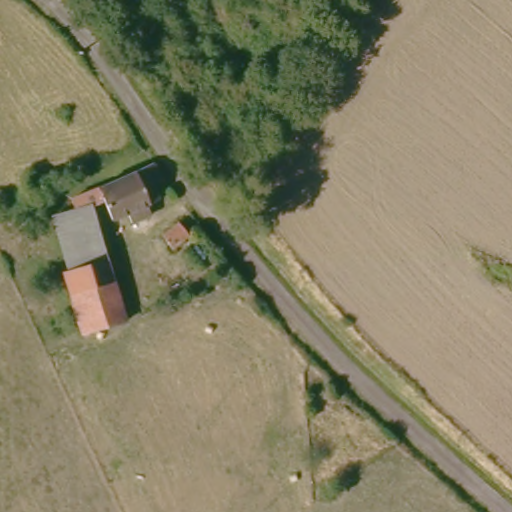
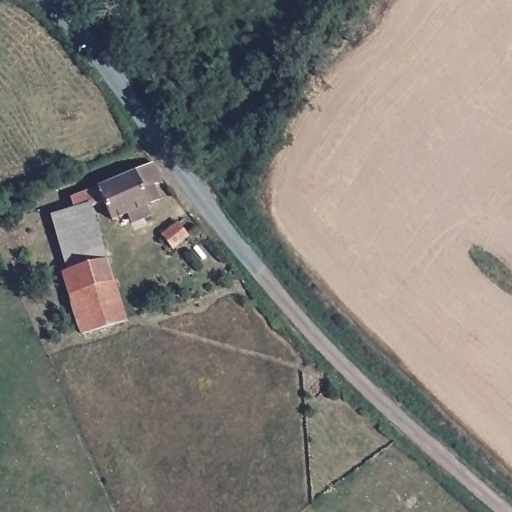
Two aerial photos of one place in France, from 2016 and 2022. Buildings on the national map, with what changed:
unchanged [(151,181),(156,198),(104,216),(99,202),(89,207),(121,318),(73,331),(54,271),(61,269),(46,218),(70,210),(68,194),(149,162),(159,177),(151,181)]
unchanged [(177,225),(189,238),(174,254),(161,240),(177,225)]

